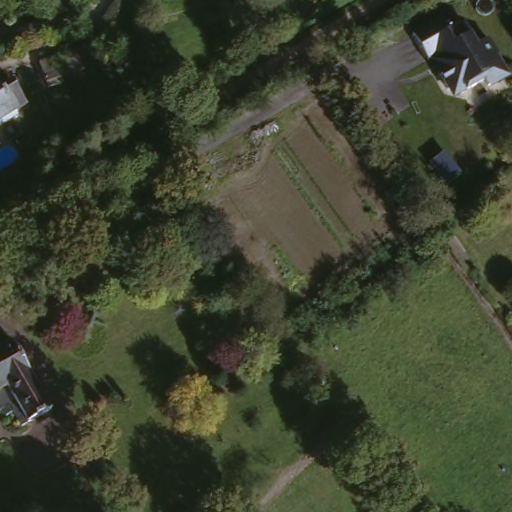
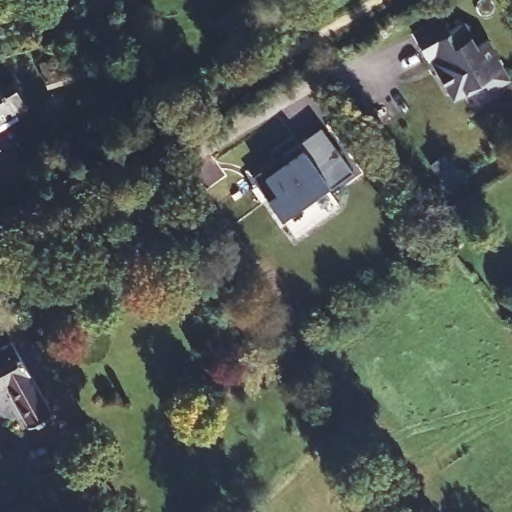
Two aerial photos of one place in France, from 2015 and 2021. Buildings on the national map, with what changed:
unchanged [(494,85),(488,79),(462,94),(420,37),(445,14),(451,21),(462,16),(478,39),(486,34),(511,75),(494,85)]
unchanged [(71,54),(76,73),(54,79),(56,84),(40,88),(34,64),(71,54)]
unchanged [(0,77),(3,83),(14,77),(25,98),(15,104),(18,110),(0,120),(0,77)]
new [(329,185),(299,207),(298,205),(281,216),(269,197),(275,192),(264,177),(288,159),(283,151),(298,142),(315,164),(338,148),(351,170),(329,185)]
unchanged [(54,408),(29,423),(8,386),(0,390),(0,348),(14,340),(54,408)]

